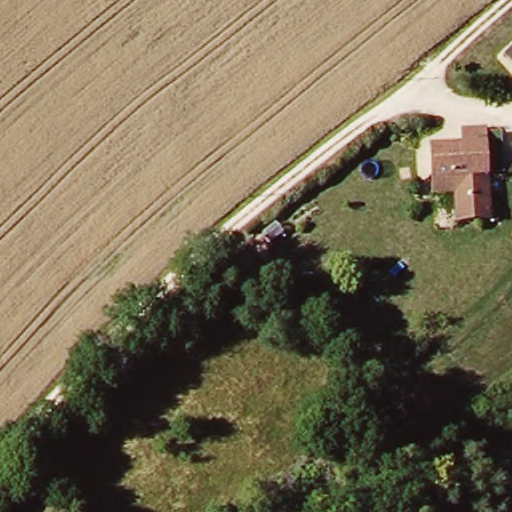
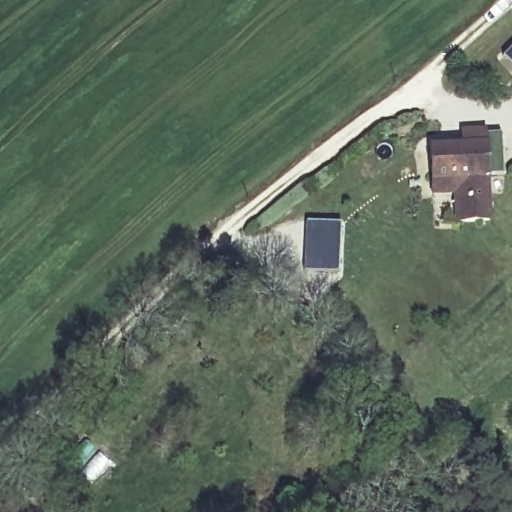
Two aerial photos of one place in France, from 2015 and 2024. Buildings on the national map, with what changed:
unchanged [(503,58),(512,49),(512,66),(503,58)]
unchanged [(432,175),(430,145),(462,142),(461,130),(483,128),(483,136),(484,141),(488,217),(458,219),(455,188),(433,190),(432,175)]
new [(305,221),(340,222),(337,271),(303,269),(305,221)]

